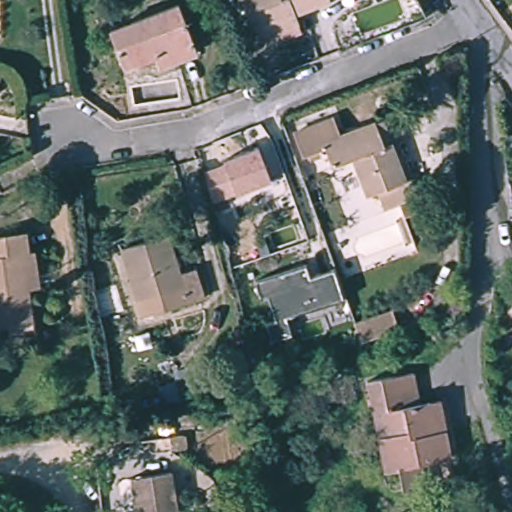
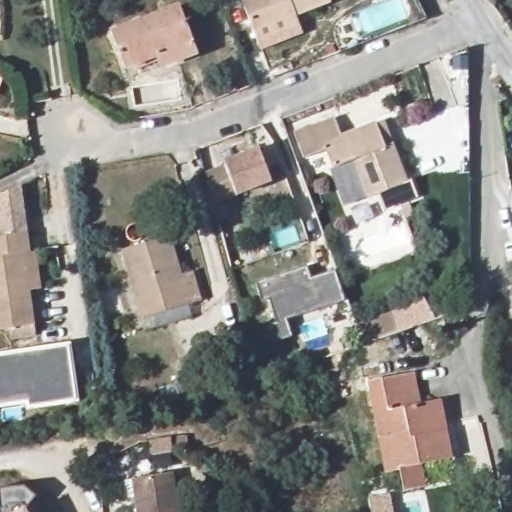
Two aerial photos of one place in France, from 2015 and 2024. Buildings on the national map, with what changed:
unchanged [(328,3),(253,34),(239,0),(326,0),(328,3)]
unchanged [(201,53),(163,66),(158,55),(125,67),(112,30),(184,6),(201,53)]
new [(296,16),(302,33),(259,51),(253,34),(296,16)]
unchanged [(387,208),(379,195),(366,198),(353,161),(334,169),(326,151),(302,158),(300,132),(335,117),(344,133),(388,120),(419,197),(387,208)]
unchanged [(258,146),(268,180),(214,200),(204,167),(258,146)]
unchanged [(25,260),(34,329),(0,334),(0,240),(30,235),(32,259),(25,260)]
unchanged [(184,273),(202,269),(208,300),(187,304),(143,318),(138,302),(122,250),(170,237),(184,273)]
unchanged [(301,267),(305,278),(330,270),(339,300),(284,320),(289,338),(266,344),(261,325),(271,322),(265,300),(256,302),(250,282),(301,267)]
new [(15,360),(23,359),(21,351),(65,344),(75,399),(28,407),(26,401),(0,405),(0,354),(13,352),(15,360)]
unchanged [(417,406),(439,402),(453,458),(422,466),(426,487),(403,492),(397,471),(385,474),(376,447),(392,441),(376,383),(410,375),(417,406)]
unchanged [(163,474),(169,512),(129,512),(123,481),(163,474)]

